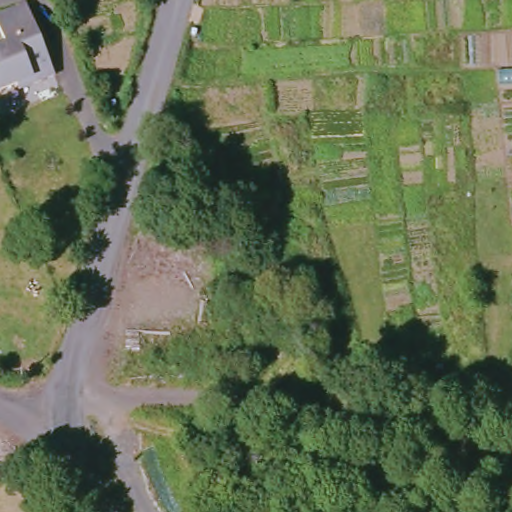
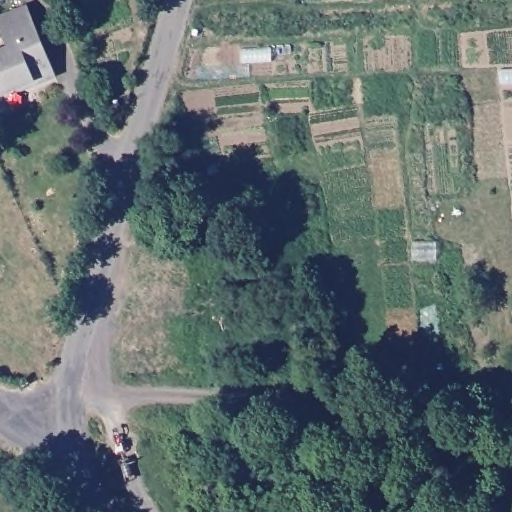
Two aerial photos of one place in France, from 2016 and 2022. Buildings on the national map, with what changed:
unchanged [(18,79),(0,86),(0,45),(7,43),(0,25),(0,13),(29,2),(56,72),(35,80),(21,85),(18,79)]

